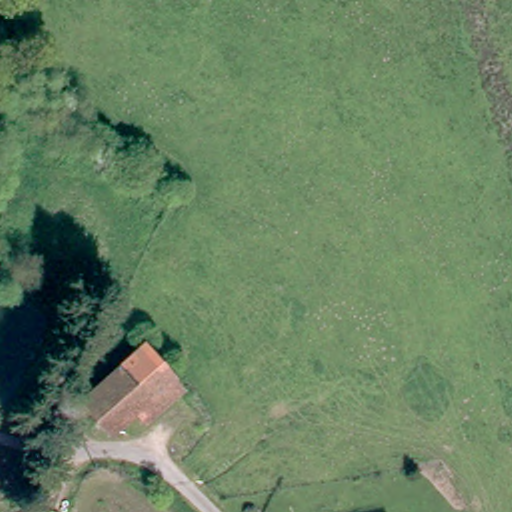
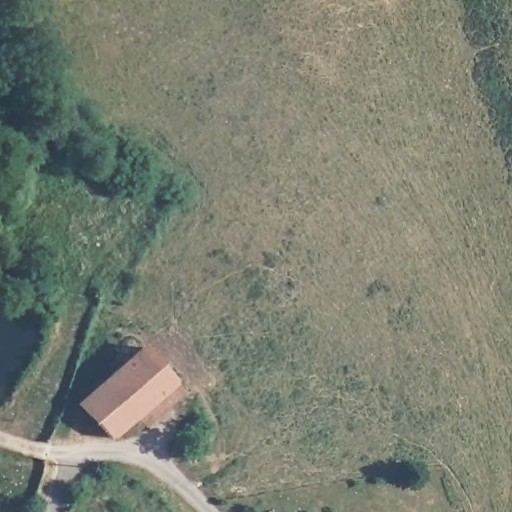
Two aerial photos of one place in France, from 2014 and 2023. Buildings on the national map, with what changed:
unchanged [(78,405),(141,346),(173,379),(110,438),(78,405)]

